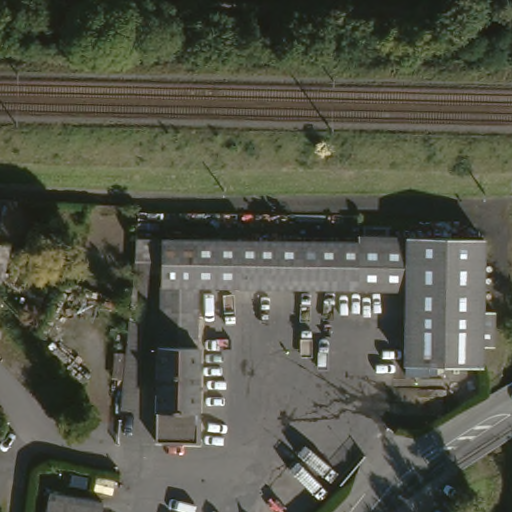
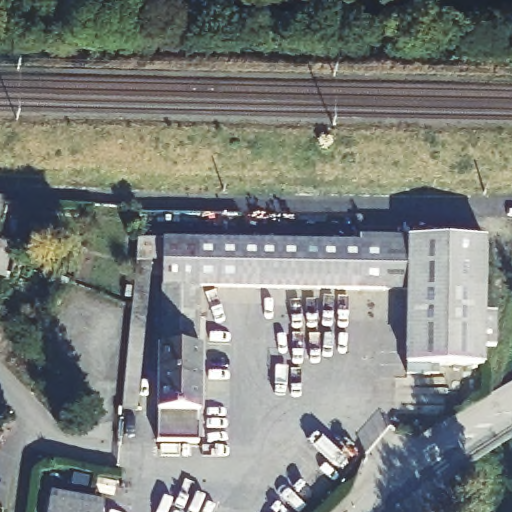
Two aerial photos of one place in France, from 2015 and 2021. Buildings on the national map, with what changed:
unchanged [(0,226),(0,198),(6,199),(0,226)]
unchanged [(362,242),(362,235),(486,238),(485,308),(497,308),(497,342),(485,342),(485,364),(410,364),(411,289),(201,284),(200,346),(202,346),(200,439),(158,437),(161,345),(164,345),(166,259),(166,237),(362,242)]
unchanged [(0,241),(14,245),(12,256),(9,273),(7,278),(0,274),(0,241)]
unchanged [(106,512),(50,512),(55,493),(107,504),(106,512)]

